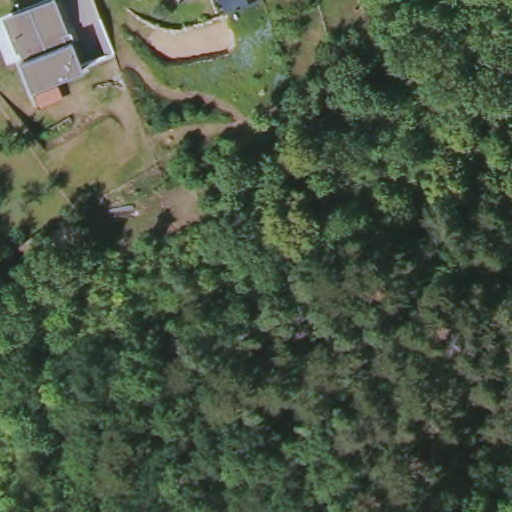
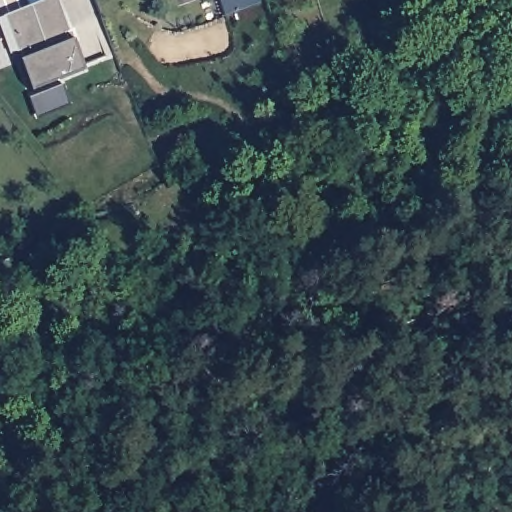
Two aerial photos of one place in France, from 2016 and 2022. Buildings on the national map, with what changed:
unchanged [(62,0),(78,37),(74,40),(86,70),(33,90),(4,15),(45,0),(62,0)]

